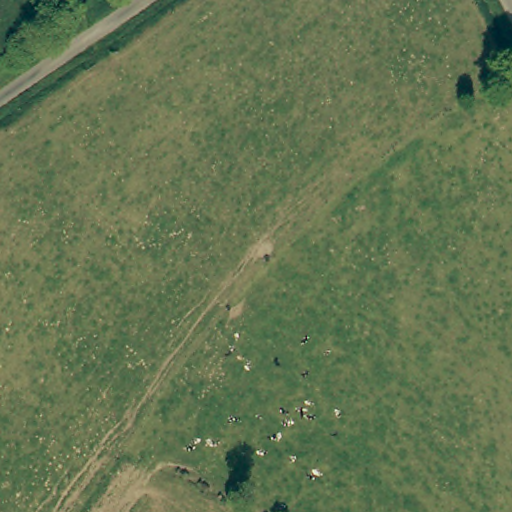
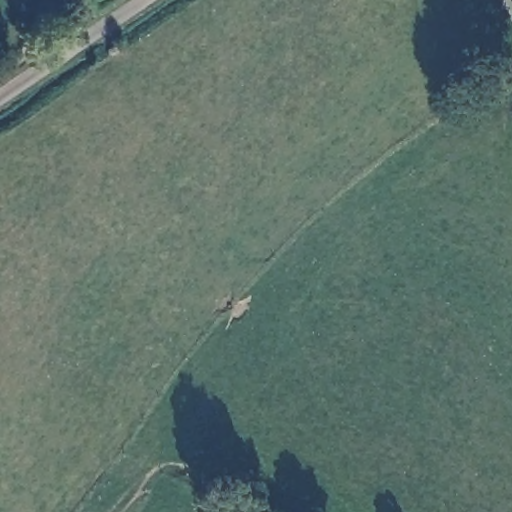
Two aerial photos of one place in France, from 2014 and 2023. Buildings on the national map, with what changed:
[]

